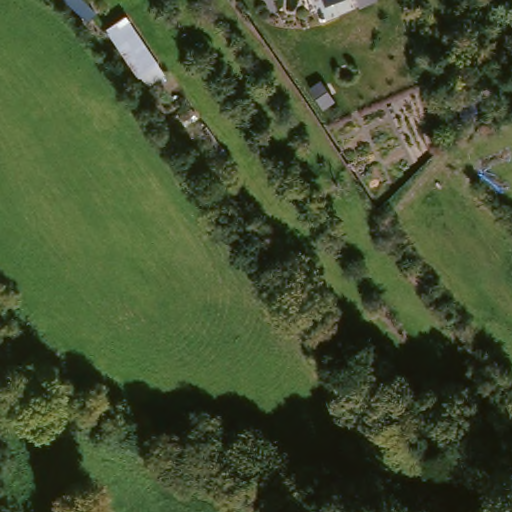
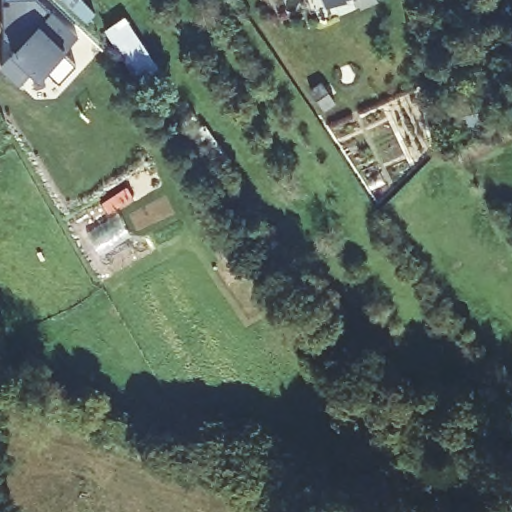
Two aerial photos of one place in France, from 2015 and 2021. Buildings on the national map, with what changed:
unchanged [(96,13),(89,21),(65,0),(83,0),(96,13)]
new [(60,83),(47,72),(40,81),(32,73),(20,86),(1,67),(12,53),(16,50),(4,40),(3,2),(38,1),(52,15),(52,14),(80,39),(68,50),(64,55),(76,66),(60,83)]
unchanged [(135,16),(174,74),(157,86),(150,77),(149,78),(116,29),(135,16)]

